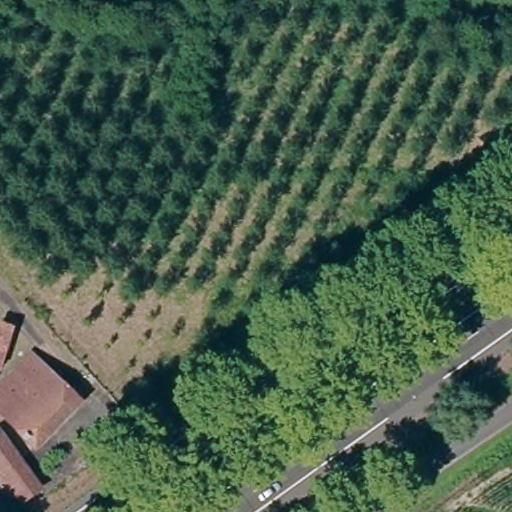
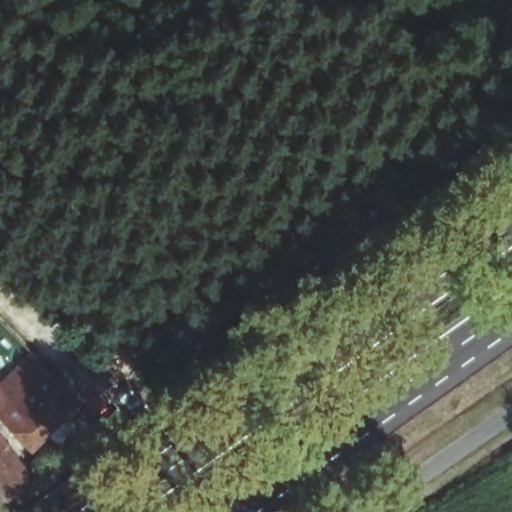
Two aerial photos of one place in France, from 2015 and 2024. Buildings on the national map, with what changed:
unchanged [(33,448),(0,415),(0,385),(30,354),(79,403),(33,448)]
unchanged [(0,436),(39,488),(14,507),(0,489),(0,436)]

